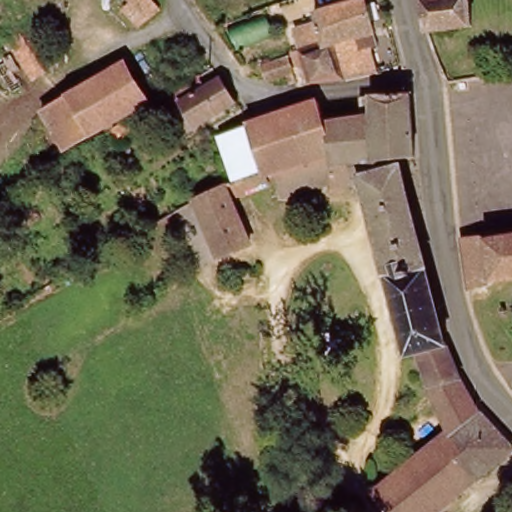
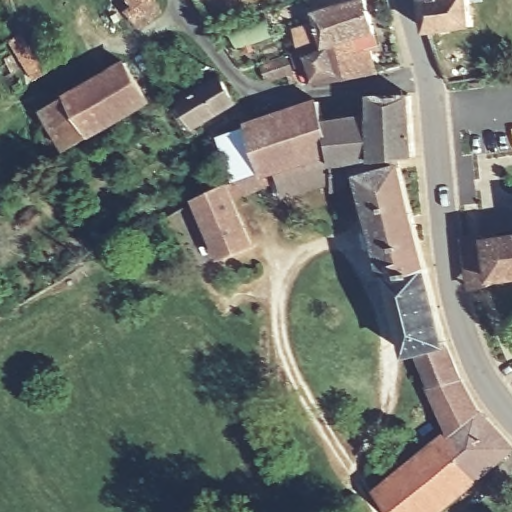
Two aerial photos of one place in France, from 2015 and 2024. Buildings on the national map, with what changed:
unchanged [(162,4),(153,9),(155,14),(135,27),(127,13),(130,10),(124,0),(159,0),(162,4)]
unchanged [(470,29),(429,32),(425,8),(421,0),(460,0),(470,0),(470,29)]
unchanged [(372,32),(362,35),(366,49),(372,70),(352,77),(336,80),(310,84),(300,53),(322,45),(312,16),(363,3),(372,32)]
unchanged [(45,82),(19,40),(24,35),(25,39),(30,35),(55,77),(50,79),(45,82)]
unchanged [(147,53),(170,92),(150,104),(127,65),(147,53)]
unchanged [(290,71),(267,80),(262,68),(287,58),(290,71)]
unchanged [(127,65),(150,104),(93,140),(69,99),(127,65)]
unchanged [(175,96),(197,80),(207,72),(217,83),(233,104),(205,123),(195,128),(175,96)]
unchanged [(71,153),(45,112),(61,103),(69,99),(93,140),(71,153)]
unchanged [(313,107),(319,129),(362,119),(362,102),(407,100),(409,119),(410,136),(410,161),(394,163),(327,173),(325,163),(278,174),(262,178),(260,172),(245,132),(260,127),(313,107)]
unchanged [(234,181),(220,142),(245,132),(260,172),(234,181)]
unchanged [(391,512),(380,499),(434,454),(454,437),(430,393),(434,391),(419,359),(409,363),(377,239),(372,240),(369,229),(372,228),(362,190),(332,199),(330,190),(285,201),(278,174),(325,163),(327,173),(394,163),(407,214),(427,285),(458,380),(471,411),(511,455),(444,512),(391,512)]
unchanged [(195,203),(225,187),(251,245),(220,259),(195,203)]
unchanged [(493,277),(487,238),(512,234),(512,274),(493,277)]
unchanged [(462,239),(487,238),(493,277),(470,285),(462,239)]

